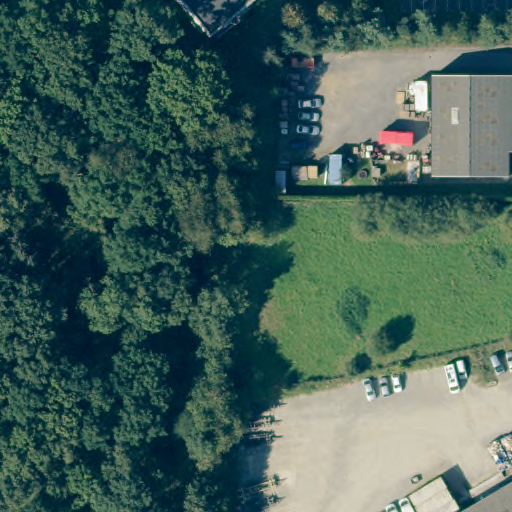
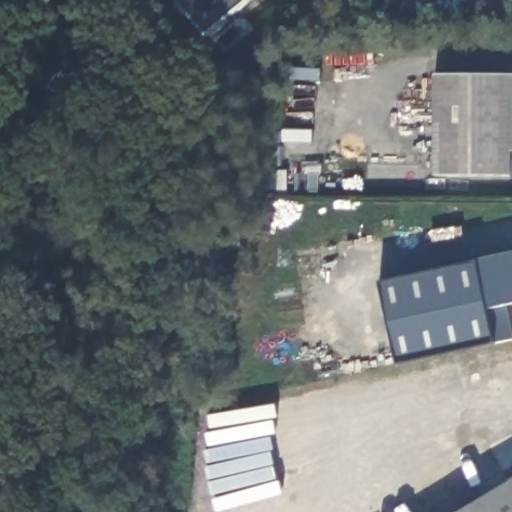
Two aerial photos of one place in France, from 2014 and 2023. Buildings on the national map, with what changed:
unchanged [(200,26),(184,8),(177,0),(242,0),(205,32),(200,26)]
unchanged [(437,75),(512,75),(512,173),(436,172),(437,75)]
new [(512,331),(512,338),(495,343),(397,364),(380,282),(512,252),(512,304),(509,305),(512,331)]
unchanged [(512,479),(512,512),(457,512),(512,479)]

